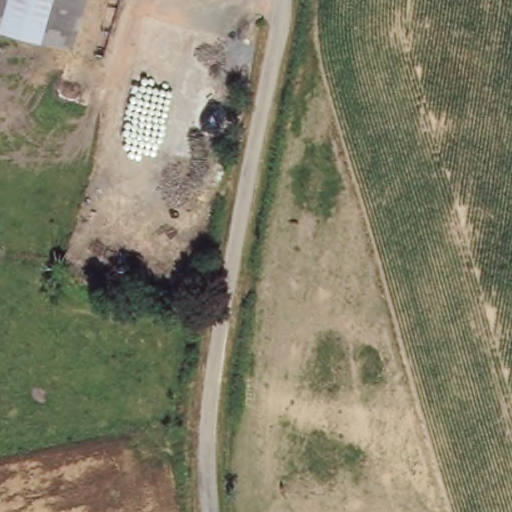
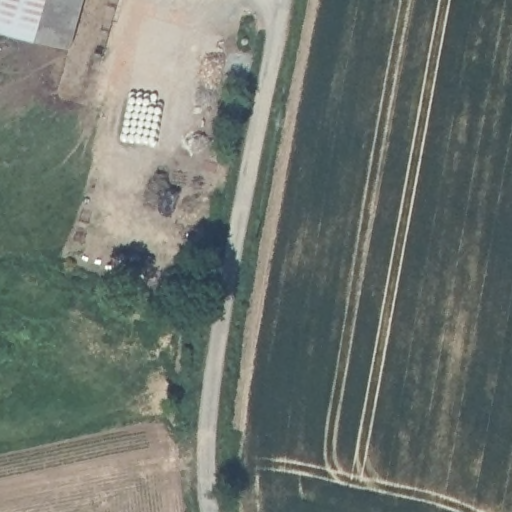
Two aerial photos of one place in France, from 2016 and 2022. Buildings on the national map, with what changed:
unchanged [(70,48),(0,29),(0,0),(84,0),(70,48)]

